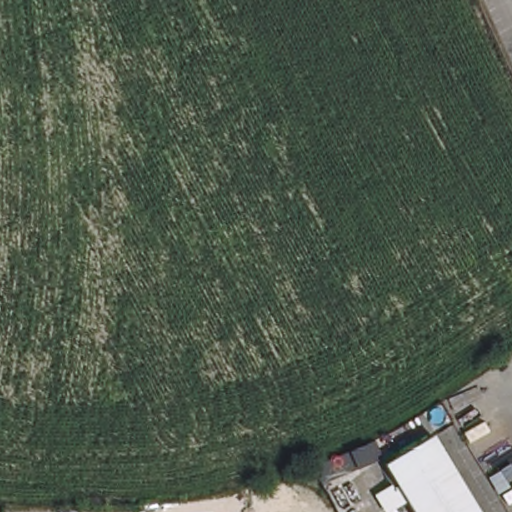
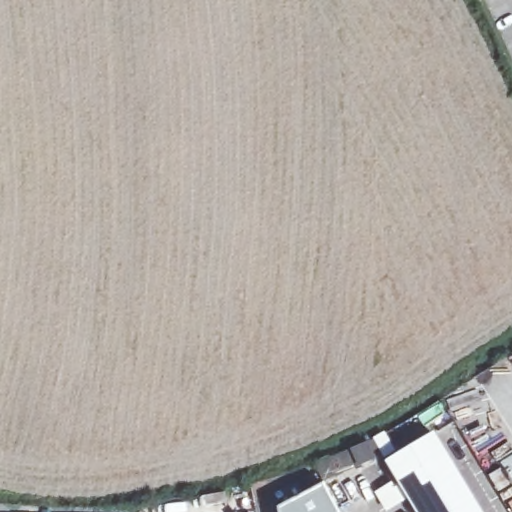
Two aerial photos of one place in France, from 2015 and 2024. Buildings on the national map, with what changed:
unchanged [(390,461),(397,456),(437,432),(485,512),(420,512),(402,482),(390,461)]
unchanged [(499,465),(507,481),(497,486),(489,471),(499,465)]
new [(319,482),(336,512),(277,512),(276,506),(319,482)]

